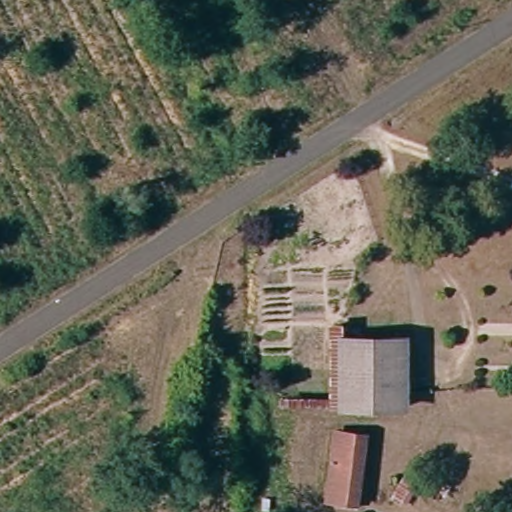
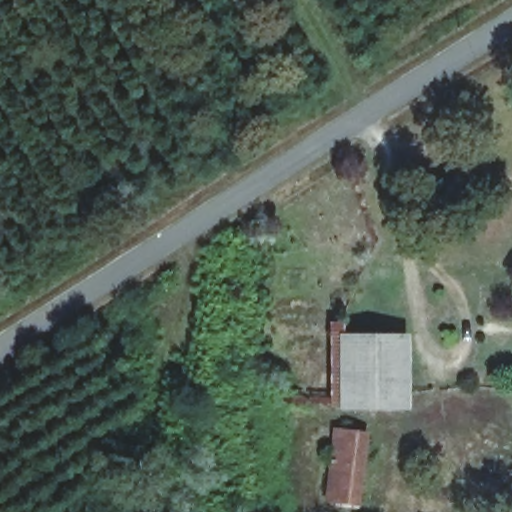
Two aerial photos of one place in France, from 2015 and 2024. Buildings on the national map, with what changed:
unchanged [(357,339),(393,340),(393,404),(355,402),(357,339)]
unchanged [(333,438),(368,444),(357,500),(323,494),(333,438)]

